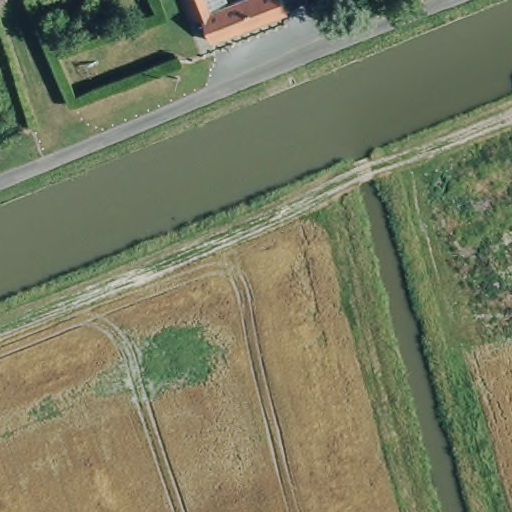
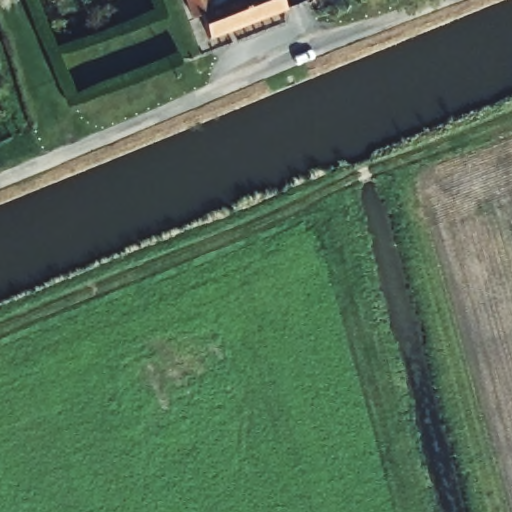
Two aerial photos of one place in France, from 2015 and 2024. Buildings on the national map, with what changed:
unchanged [(241,0),(285,0),(288,9),(206,41),(197,18),(190,20),(182,0),(214,0),(217,9),(241,0)]
unchanged [(331,0),(319,3),(318,0),(331,0)]

